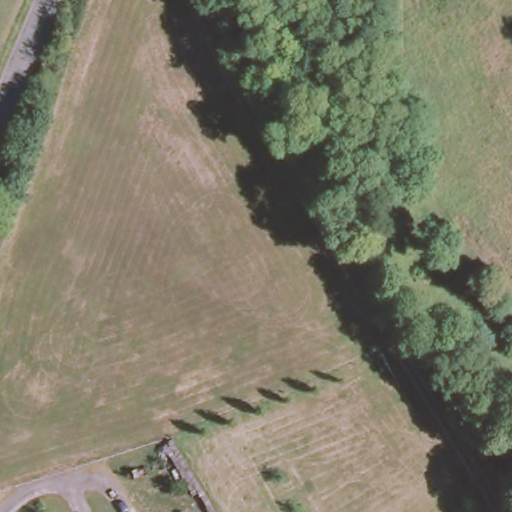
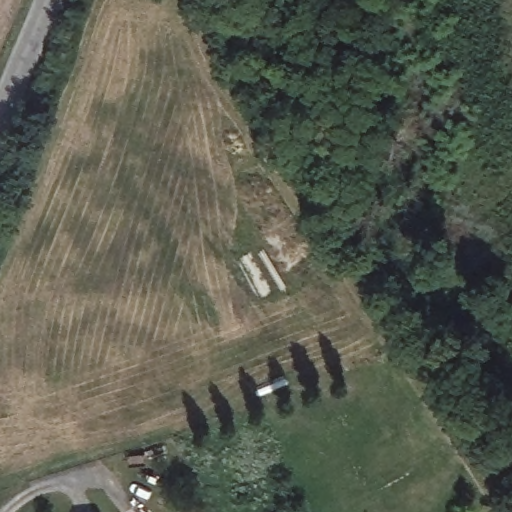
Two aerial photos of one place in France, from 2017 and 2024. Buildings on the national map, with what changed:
unchanged [(508,489),(489,458),(512,444),(512,487),(508,489)]

